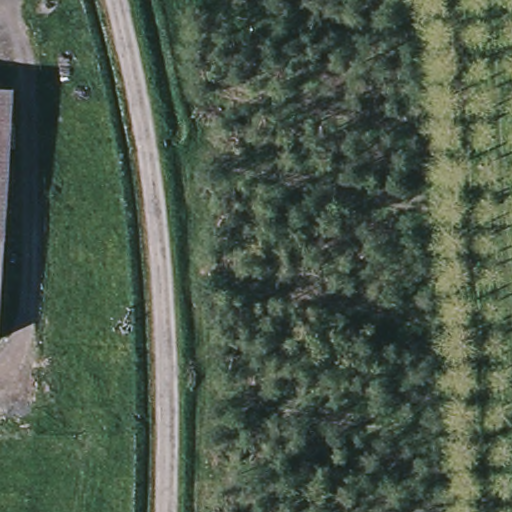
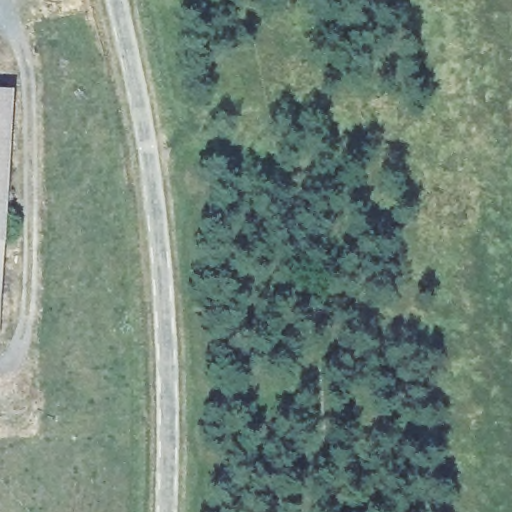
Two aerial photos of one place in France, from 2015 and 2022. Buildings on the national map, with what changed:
unchanged [(12,88),(0,334),(0,87),(12,88)]

